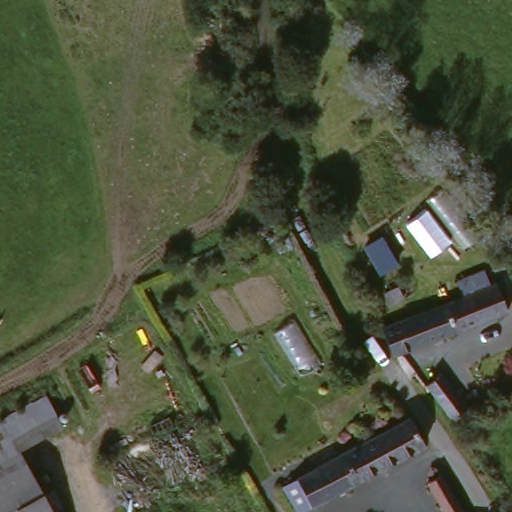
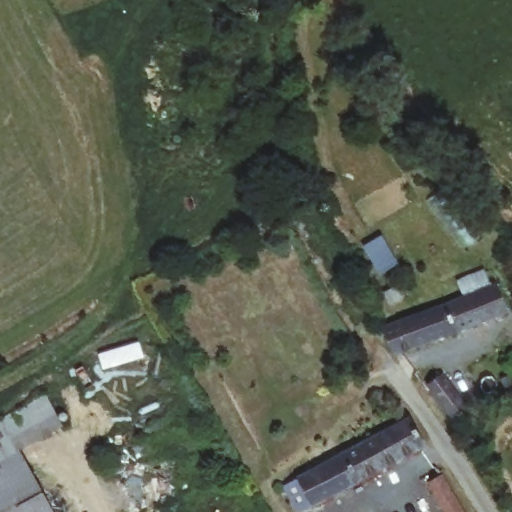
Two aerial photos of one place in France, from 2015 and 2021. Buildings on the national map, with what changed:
unchanged [(499,275),(511,305),(396,347),(383,320),(499,275)]
unchanged [(426,382),(439,373),(464,410),(451,420),(426,382)]
unchanged [(18,449),(53,512),(0,512),(0,419),(28,404),(44,433),(18,449)]
unchanged [(429,445),(299,512),(284,483),(412,416),(429,445)]
unchanged [(446,473),(469,512),(448,512),(429,482),(446,473)]

